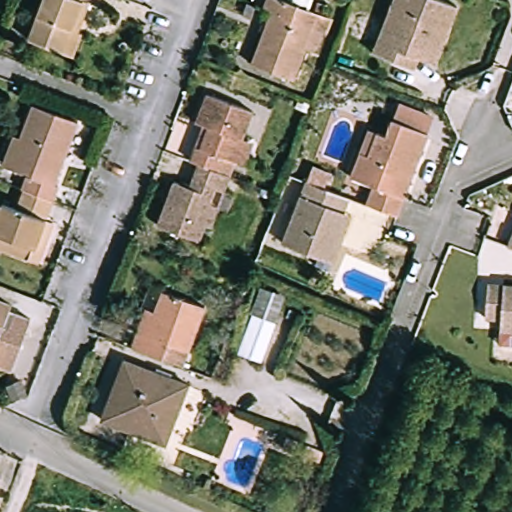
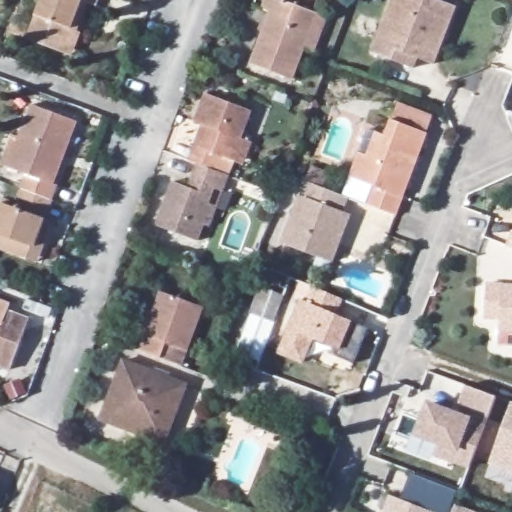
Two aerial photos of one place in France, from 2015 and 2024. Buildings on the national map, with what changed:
unchanged [(95,12),(81,7),(62,57),(29,44),(46,0),(100,0),(95,12)]
unchanged [(306,57),(295,54),(283,83),(245,68),(265,17),(257,14),(263,0),(320,22),(306,57)]
unchanged [(372,57),(389,12),(393,0),(425,0),(455,11),(433,67),(417,60),(411,72),(372,57)]
unchanged [(244,164),(238,162),(224,157),(218,176),(194,168),(188,166),(203,129),(195,126),(205,98),(252,115),(242,140),(246,141),(253,143),(244,164)]
unchanged [(398,108),(433,122),(427,139),(394,220),(362,208),(369,189),(348,181),(359,155),(367,135),(385,141),(392,125),(398,108)]
unchanged [(20,199),(26,184),(0,174),(0,173),(13,142),(20,145),(33,113),(73,129),(49,192),(52,193),(46,208),(20,199)]
unchanged [(202,226),(196,244),(156,229),(171,187),(186,192),(194,168),(218,176),(228,180),(221,198),(209,230),(202,226)]
unchanged [(347,222),(329,268),(283,250),(306,191),(344,206),(339,219),(347,222)]
unchanged [(20,199),(46,208),(26,258),(0,248),(0,214),(10,218),(18,198),(20,199)]
unchanged [(512,229),(512,252),(504,249),(512,229)]
unchanged [(502,326),(486,324),(489,285),(512,287),(512,333),(502,333),(502,326)]
new [(284,296),(261,362),(236,354),(259,288),(284,296)]
unchanged [(130,348),(137,331),(145,335),(162,294),(202,309),(179,365),(163,360),(130,348)]
new [(369,329),(356,363),(337,356),(340,350),(315,340),(303,362),(280,353),(302,301),(369,329)]
unchanged [(5,307),(0,320),(0,305),(5,307)]
demolished [(272,326),(258,364),(235,359),(249,318),(272,326)]
unchanged [(15,332),(4,359),(0,357),(0,325),(15,332)]
unchanged [(164,445),(102,421),(125,366),(186,389),(164,445)]
new [(410,387),(407,398),(391,393),(395,382),(410,387)]
new [(422,404),(462,419),(465,410),(452,405),(459,386),(490,397),(464,468),(427,454),(432,442),(411,435),(422,404)]
new [(484,464),(506,403),(512,405),(512,474),(484,464)]
new [(460,492),(454,508),(449,506),(447,512),(383,512),(389,496),(401,499),(411,474),(460,492)]
unchanged [(465,512),(447,512),(449,506),(465,512)]

